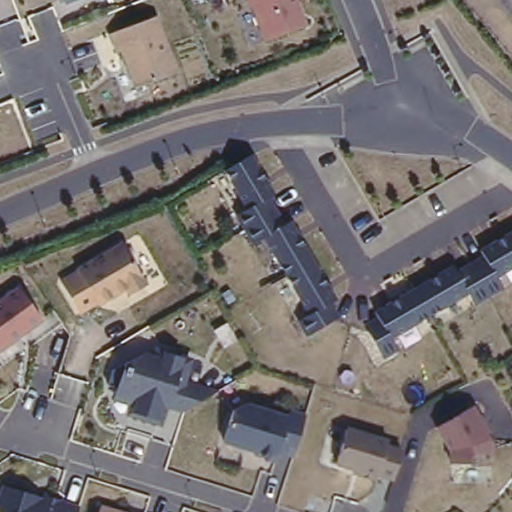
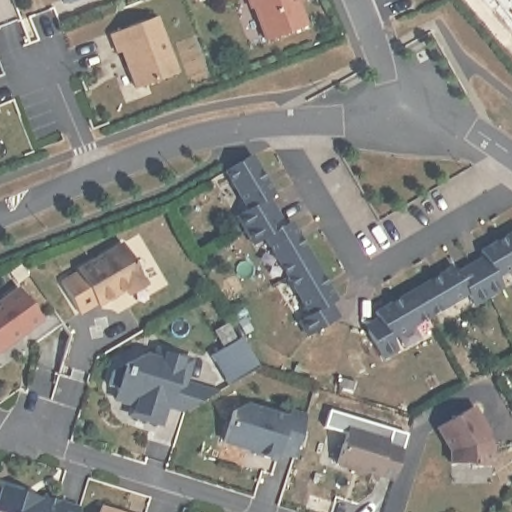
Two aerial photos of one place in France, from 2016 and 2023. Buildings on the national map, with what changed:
unchanged [(61,5),(60,0),(76,0),(61,5)]
unchanged [(305,25),(263,42),(244,0),(296,0),(305,25)]
unchanged [(154,19),(176,72),(135,89),(110,36),(154,19)]
unchanged [(273,193),(267,197),(284,224),(290,220),(336,300),(330,305),(336,318),(305,337),(295,319),(303,312),(261,240),(252,244),(234,214),(244,207),(223,175),(250,156),(273,193)]
unchanged [(502,290),(473,308),(465,296),(390,340),(396,351),(382,360),(364,330),(374,323),(370,316),(453,266),(457,271),(480,257),(476,252),(512,230),(512,271),(496,280),(502,290)]
unchanged [(146,287),(122,300),(120,293),(79,317),(59,283),(78,273),(76,267),(120,244),(146,287)]
unchanged [(44,320),(0,350),(0,299),(17,287),(44,320)]
new [(210,355),(225,348),(214,330),(232,318),(260,366),(228,385),(210,355)]
unchanged [(187,385),(218,392),(181,415),(164,411),(159,426),(124,416),(126,406),(111,403),(119,372),(145,352),(160,358),(162,352),(193,360),(187,385)]
unchanged [(287,415),(290,409),(305,411),(294,460),(276,456),(275,464),(255,459),(256,455),(222,446),(230,411),(250,403),(287,415)]
unchanged [(491,446),(491,467),(448,466),(448,447),(436,428),(472,408),(491,446)]
unchanged [(393,485),(334,468),(343,429),(402,446),(393,485)]
unchanged [(78,512),(0,512),(0,486),(80,506),(78,512)]
unchanged [(97,512),(99,505),(121,512),(97,512)]

